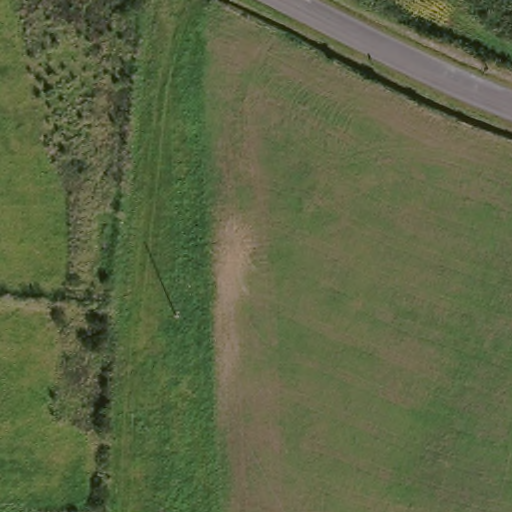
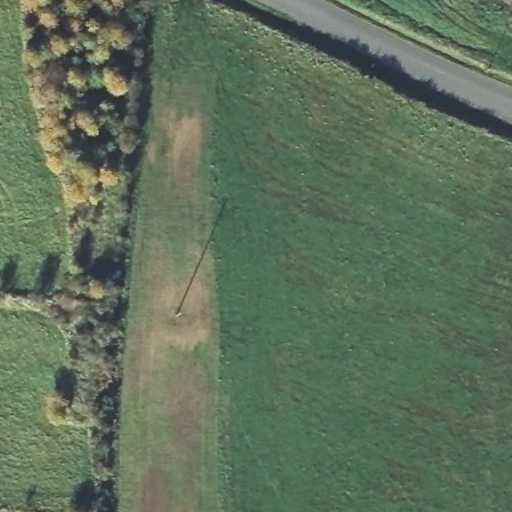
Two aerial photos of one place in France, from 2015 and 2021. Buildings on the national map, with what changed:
[]

